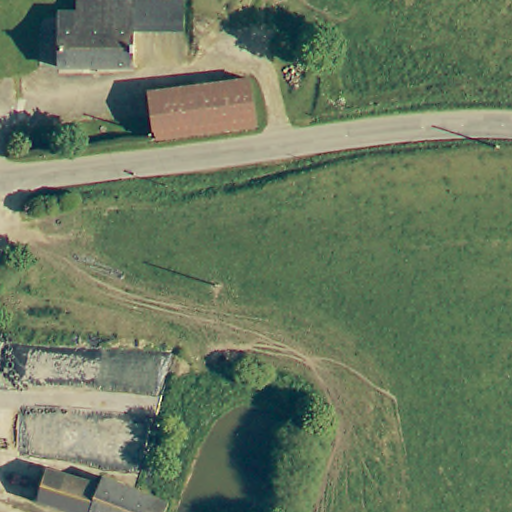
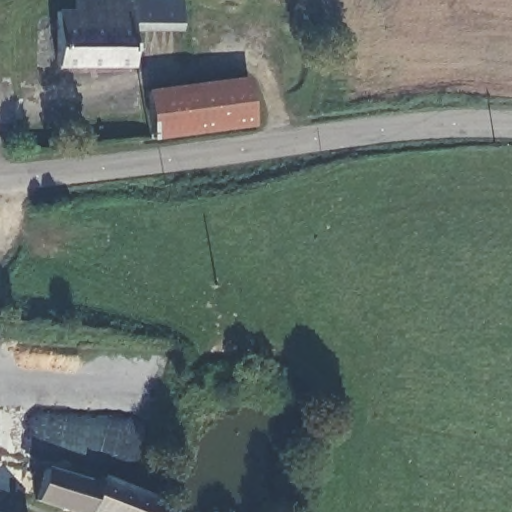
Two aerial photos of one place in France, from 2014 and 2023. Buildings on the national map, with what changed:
unchanged [(186,31),(136,27),(134,64),(59,64),(62,9),(80,10),(80,0),(167,0),(187,1),(186,31)]
unchanged [(151,90),(250,79),(257,127),(157,140),(151,90)]
unchanged [(76,512),(44,501),(51,471),(104,486),(107,478),(172,503),(168,512),(76,512)]

